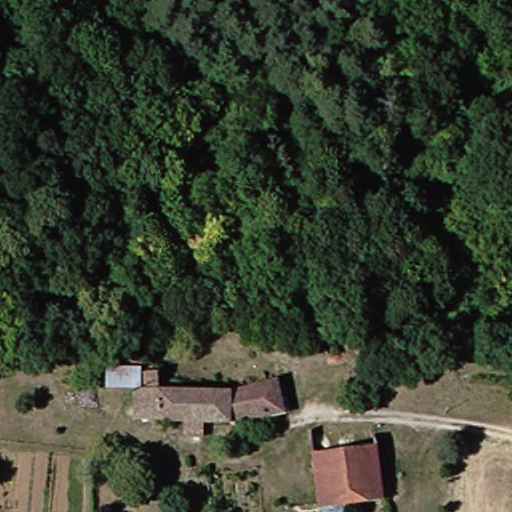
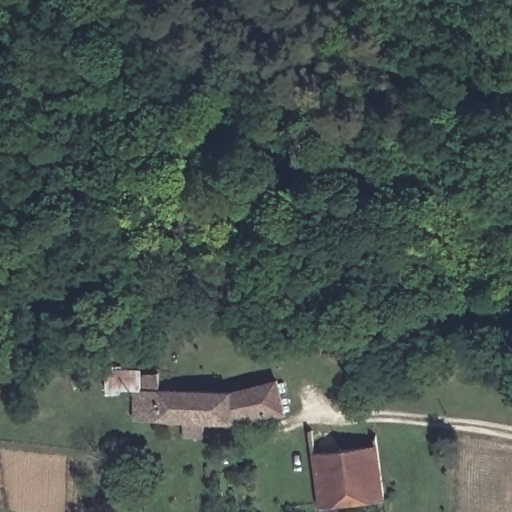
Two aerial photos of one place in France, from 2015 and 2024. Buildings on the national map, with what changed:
unchanged [(283,384),(288,416),(232,424),(125,421),(125,416),(116,416),(117,402),(136,402),(137,391),(142,391),(142,376),(170,376),(171,391),(235,391),(283,384)]
unchanged [(121,382),(121,395),(101,394),(101,382),(121,382)]
unchanged [(310,463),(309,444),(377,441),(377,461),(310,463)]
unchanged [(312,512),(311,494),(310,463),(377,461),(380,512),(312,512)]

